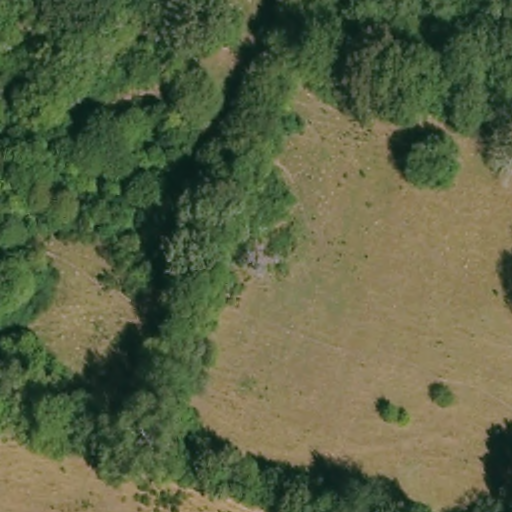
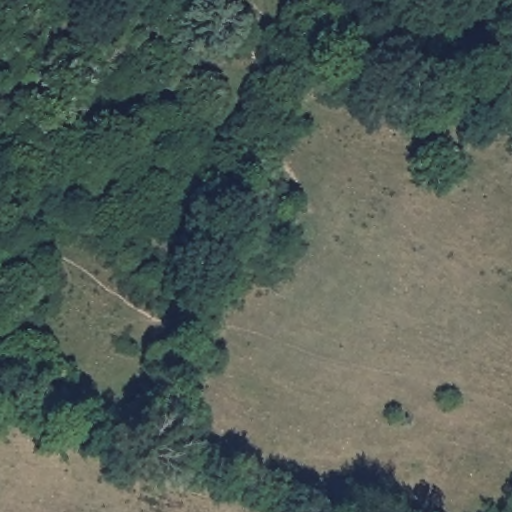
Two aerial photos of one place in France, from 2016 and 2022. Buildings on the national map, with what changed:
[]

